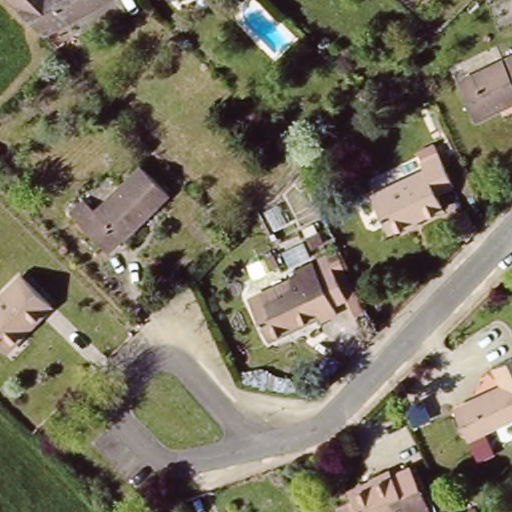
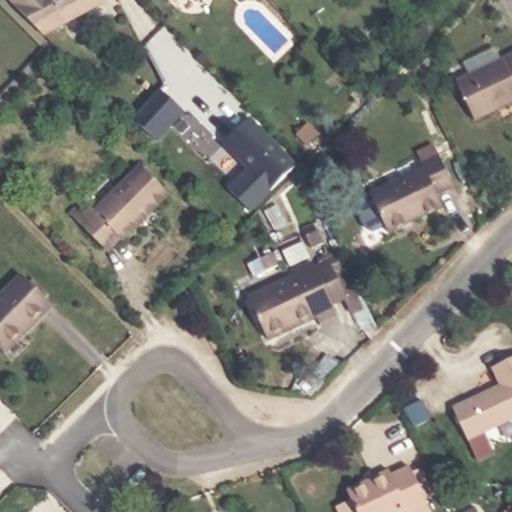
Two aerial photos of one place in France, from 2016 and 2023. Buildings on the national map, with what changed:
unchanged [(47,36),(11,0),(109,0),(47,36)]
unchanged [(464,83),(512,59),(512,109),(484,123),(464,83)]
new [(157,142),(132,119),(160,87),(184,112),(157,142)]
new [(250,211),(227,187),(246,169),(222,144),(249,117),(296,164),(250,211)]
unchanged [(430,198),(437,215),(419,224),(424,235),(404,244),(399,233),(385,239),(367,200),(420,176),(413,162),(439,150),(456,186),(430,198)]
unchanged [(138,178),(165,203),(123,247),(120,244),(109,256),(73,221),(84,210),(96,221),(138,178)]
unchanged [(274,345),(254,305),(305,279),(302,274),(324,263),(348,318),(329,327),(325,319),(274,345)]
unchanged [(4,348),(0,344),(0,300),(20,280),(46,305),(4,348)]
unchanged [(451,402),(497,386),(491,363),(512,356),(512,425),(467,442),(451,402)]
new [(424,398),(434,418),(414,428),(404,408),(424,398)]
unchanged [(352,501),(350,497),(349,492),(370,484),(368,479),(387,472),(389,477),(410,470),(426,512),(404,512),(403,512),(344,512),(342,505),(352,501)]

